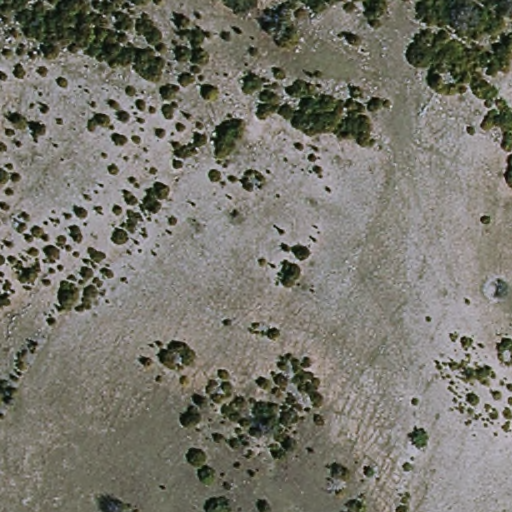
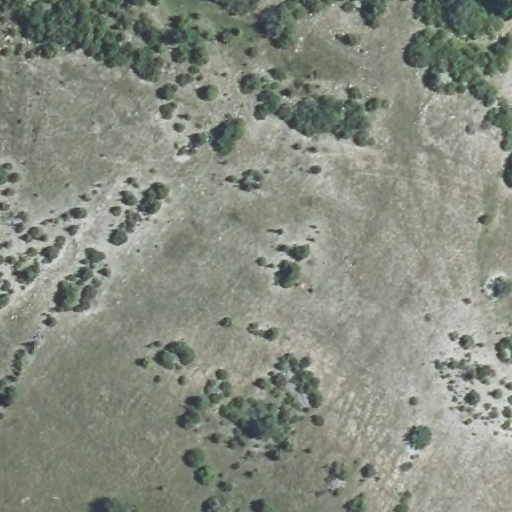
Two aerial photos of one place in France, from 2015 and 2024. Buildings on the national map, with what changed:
[]

